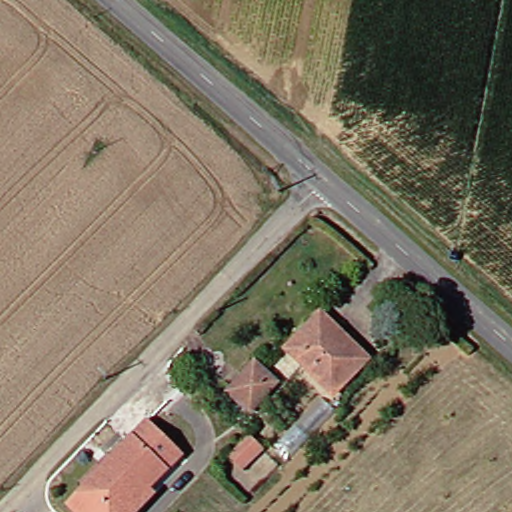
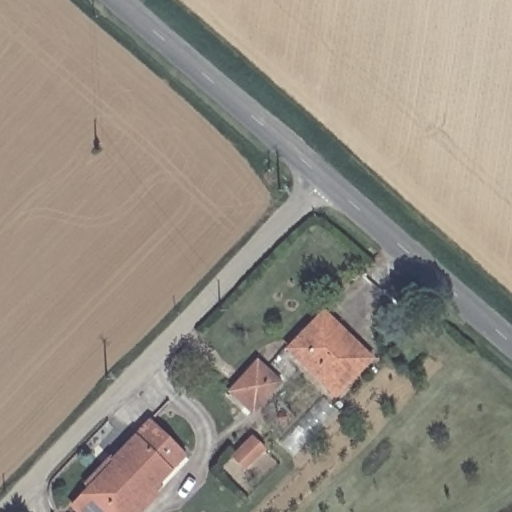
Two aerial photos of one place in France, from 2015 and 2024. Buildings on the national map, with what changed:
unchanged [(323,398),(278,353),(307,322),(313,316),(349,351),(360,361),(323,398)]
unchanged [(250,362),(274,385),(244,414),(221,392),(250,362)]
unchanged [(125,512),(62,512),(55,505),(69,492),(64,486),(91,459),(96,464),(151,408),(184,441),(138,488),(143,494),(125,512)]
unchanged [(255,464),(241,478),(226,463),(240,450),(255,464)]

